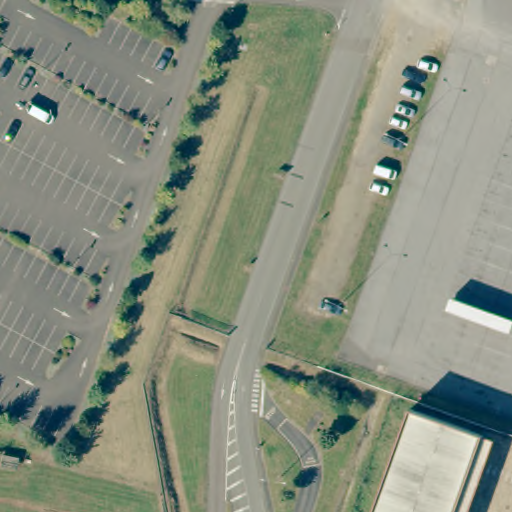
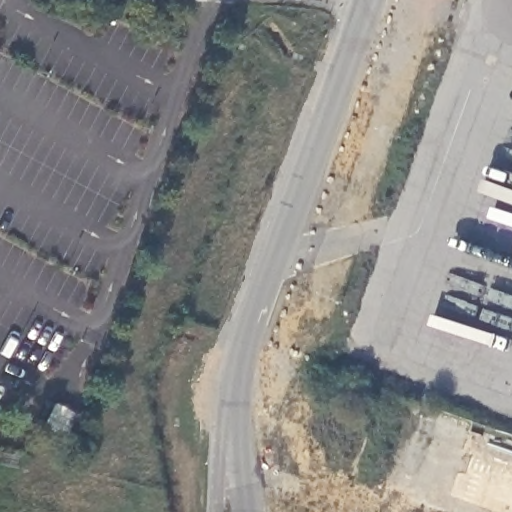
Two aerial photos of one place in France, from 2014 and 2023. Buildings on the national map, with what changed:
demolished [(489,431),(461,512),(377,512),(415,405),(489,431)]

